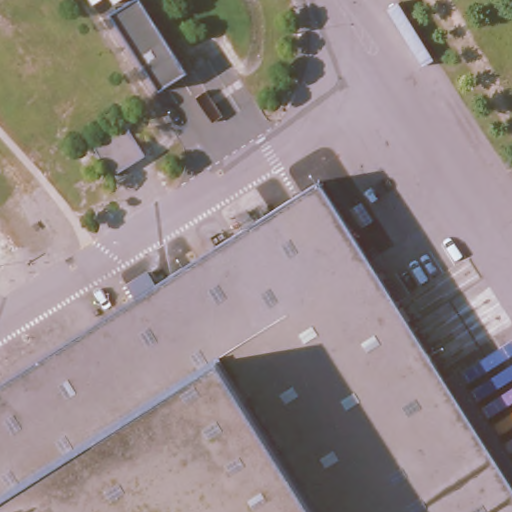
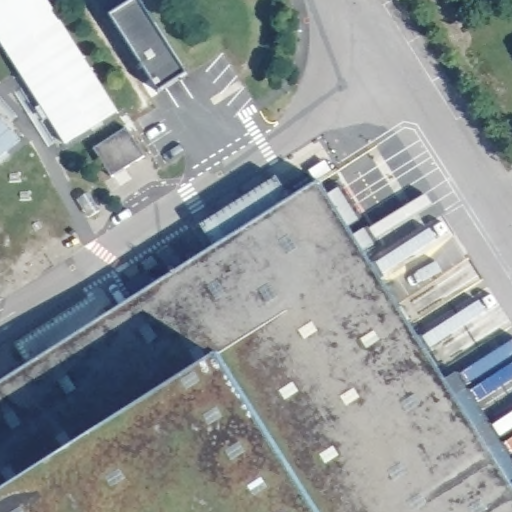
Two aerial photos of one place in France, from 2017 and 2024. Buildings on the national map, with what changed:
new [(65,145),(0,41),(0,0),(48,0),(118,112),(93,129),(65,145)]
unchanged [(187,74),(158,93),(108,17),(136,0),(139,0),(187,74)]
new [(21,141),(6,154),(9,158),(2,165),(0,163),(0,116),(21,141)]
unchanged [(143,160),(106,179),(91,149),(127,129),(143,160)]
unchanged [(324,180),(512,477),(512,512),(0,512),(0,385),(324,180)]

